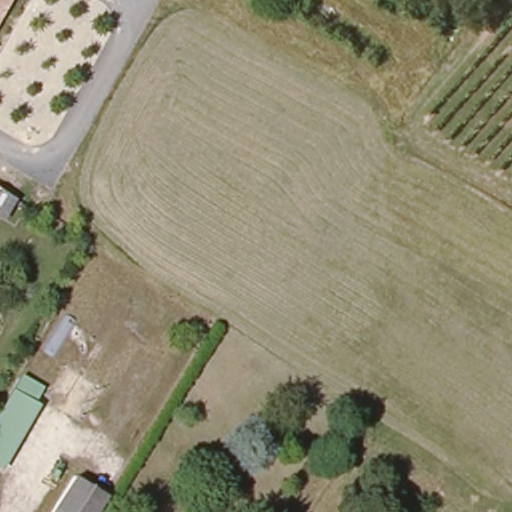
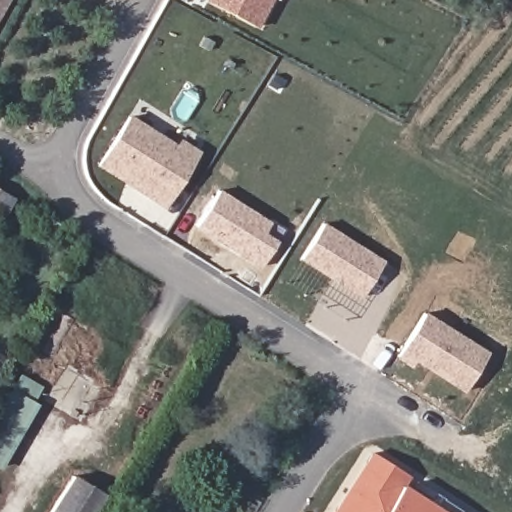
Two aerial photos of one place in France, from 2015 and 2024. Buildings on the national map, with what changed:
unchanged [(9,0),(0,15),(0,0),(9,0)]
new [(216,5),(209,1),(209,0),(272,0),(258,27),(216,5)]
new [(181,137),(202,151),(167,209),(96,166),(129,113),(176,144),(181,137)]
new [(264,232),(277,241),(258,267),(194,227),(218,189),(271,222),(264,232)]
unchanged [(1,221),(0,221),(0,193),(12,200),(1,221)]
new [(386,260),(361,297),(300,257),(323,222),(386,260)]
new [(412,367),(397,357),(426,312),(490,352),(464,392),(414,361),(412,367)]
new [(32,400),(38,403),(1,469),(0,469),(0,407),(11,388),(20,373),(42,386),(32,400)]
new [(371,451),(411,475),(405,483),(428,499),(434,491),(465,511),(466,512),(332,512),(371,451)]
unchanged [(76,473),(107,493),(95,512),(52,512),(76,473)]

